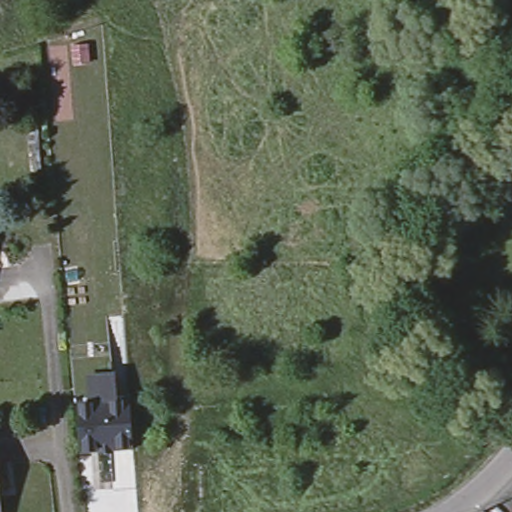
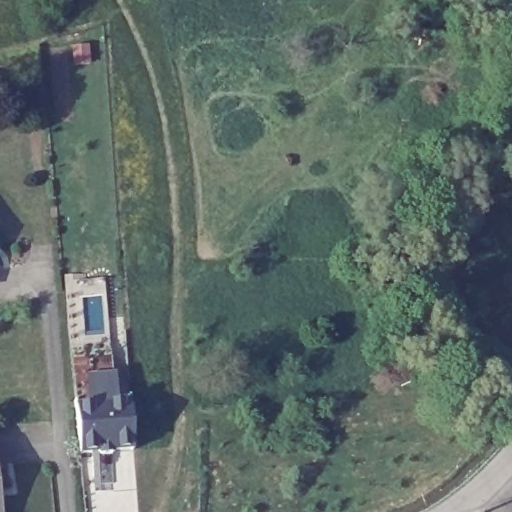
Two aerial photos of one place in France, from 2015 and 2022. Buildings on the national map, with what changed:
unchanged [(76,404),(92,402),(90,375),(114,374),(115,388),(107,397),(111,400),(131,398),(134,447),(115,448),(112,451),(102,452),(99,449),(80,451),(76,404)]

